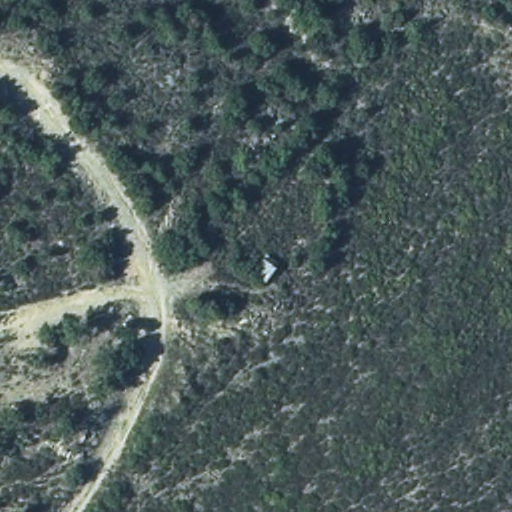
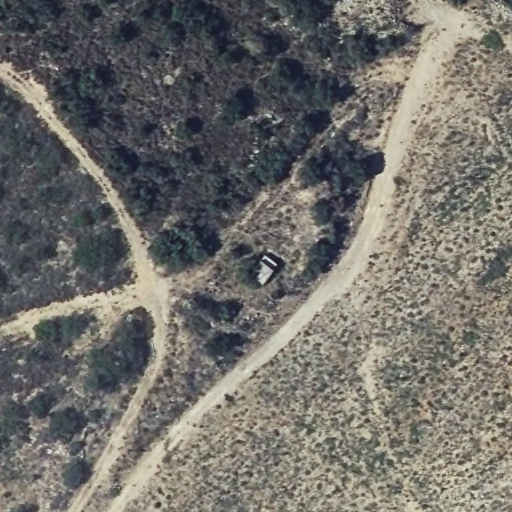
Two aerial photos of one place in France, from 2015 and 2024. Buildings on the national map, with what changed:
unchanged [(247,274),(264,250),(280,262),(262,283),(247,274)]

